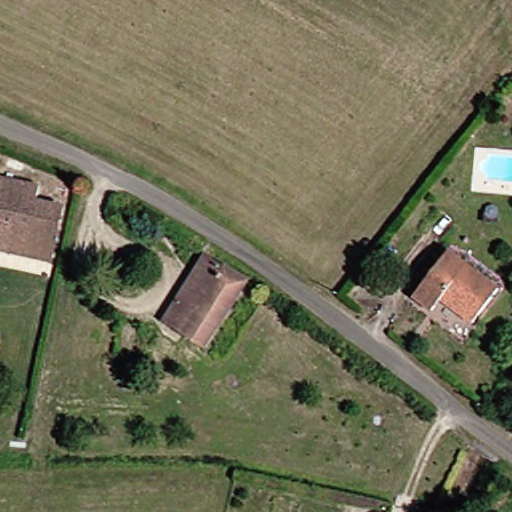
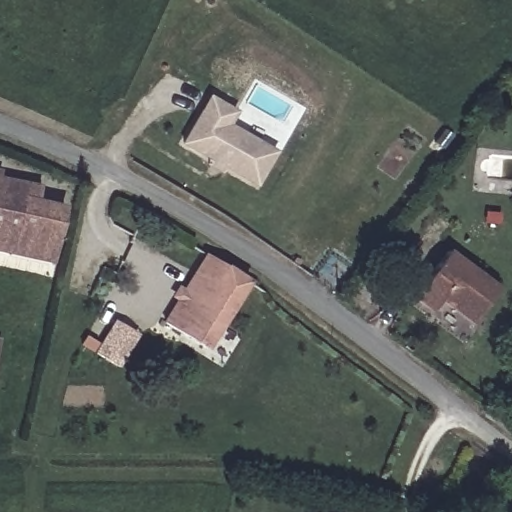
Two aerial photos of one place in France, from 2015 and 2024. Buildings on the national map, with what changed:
new [(188,141),(214,97),(239,112),(232,125),(277,151),(258,182),(228,165),(225,170),(212,162),(215,157),(188,141)]
unchanged [(4,167),(2,174),(10,176),(7,191),(0,189),(0,167),(4,167)]
unchanged [(0,247),(0,189),(7,191),(10,176),(50,184),(46,200),(66,204),(54,259),(0,247)]
unchanged [(169,313),(210,251),(249,278),(208,340),(169,313)]
unchanged [(435,313),(417,300),(454,252),(503,290),(476,325),(451,306),(444,301),(435,313)]
new [(121,319),(142,332),(122,365),(101,351),(121,319)]
unchanged [(4,336),(0,354),(0,335),(4,336)]

